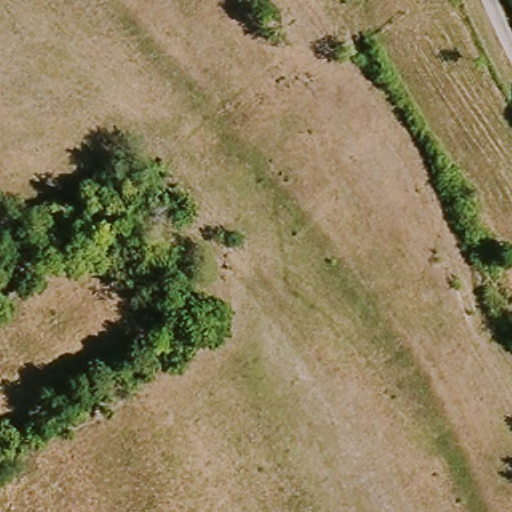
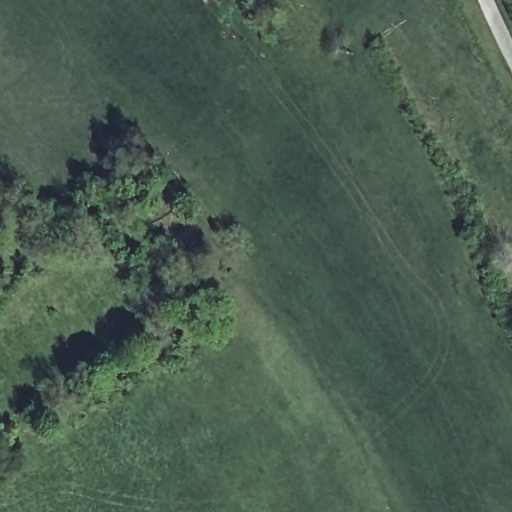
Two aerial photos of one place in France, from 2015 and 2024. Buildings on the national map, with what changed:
[]

